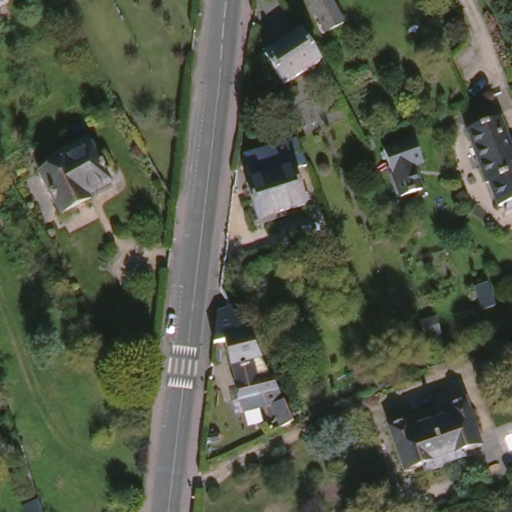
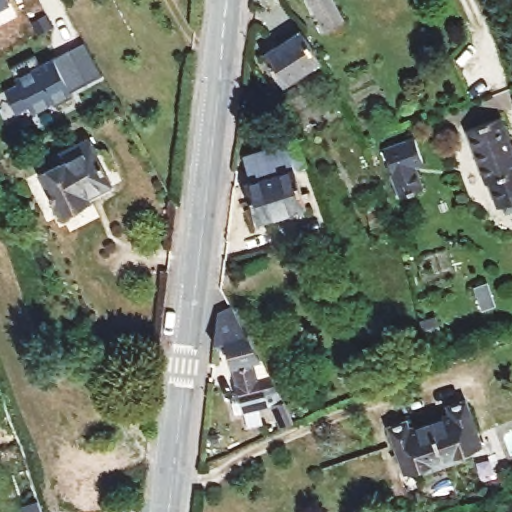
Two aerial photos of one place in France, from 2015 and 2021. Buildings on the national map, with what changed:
unchanged [(328,27),(314,0),(338,0),(347,18),(328,27)]
unchanged [(284,80),(266,49),(302,28),(320,59),(284,80)]
new [(17,86),(9,71),(34,58),(39,69),(70,52),(87,86),(70,95),(72,99),(54,108),(51,104),(32,114),(28,108),(15,115),(4,94),(17,86)]
unchanged [(505,203),(501,204),(492,179),(489,180),(471,125),(503,115),(512,140),(512,209),(508,211),(505,203)]
unchanged [(307,160),(293,164),(301,192),(304,191),(306,198),(303,199),(304,204),(258,218),(246,178),(251,177),(243,150),(298,133),(307,160)]
unchanged [(91,193),(93,198),(63,213),(41,169),(59,160),(56,154),(90,136),(113,182),(91,193)]
unchanged [(418,163),(427,187),(406,195),(388,148),(419,136),(428,160),(418,163)]
unchanged [(242,402),(248,400),(233,340),(232,338),(221,341),(224,310),(239,303),(258,334),(283,380),(296,404),(304,419),(289,425),(275,404),(254,410),(245,413),(242,402)]
unchanged [(435,331),(430,314),(445,309),(450,326),(435,331)]
unchanged [(458,408),(475,402),(490,447),(450,461),(437,424),(460,415),(458,408)]
unchanged [(450,461),(413,474),(398,429),(416,423),(419,430),(437,424),(450,461)]
unchanged [(43,483),(28,488),(21,464),(36,459),(43,483)]
unchanged [(51,508),(37,512),(35,512),(30,495),(46,489),(51,508)]

